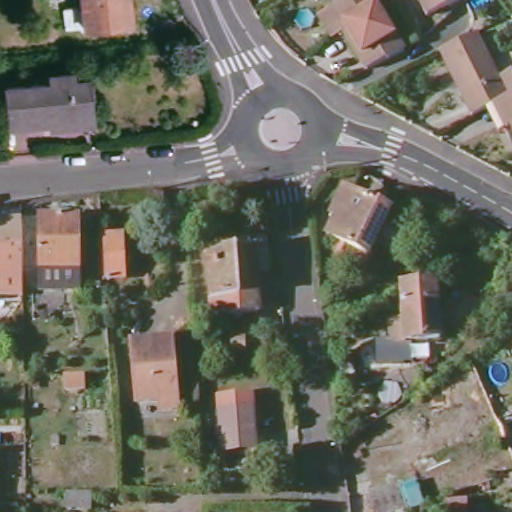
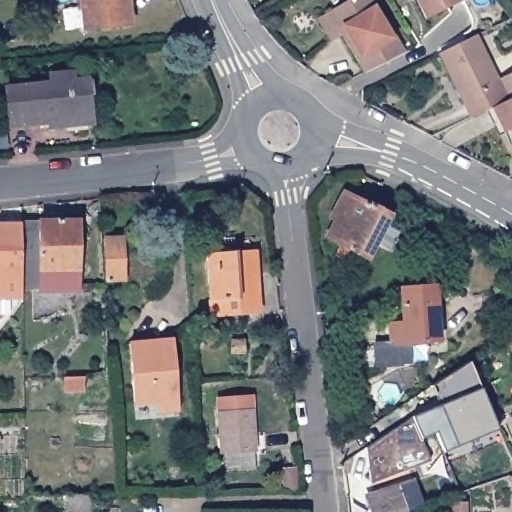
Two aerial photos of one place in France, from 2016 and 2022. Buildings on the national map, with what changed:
unchanged [(85,29),(81,0),(127,0),(130,24),(85,29)]
unchanged [(362,71),(341,29),(345,27),(332,2),(338,0),(374,0),(401,51),(362,71)]
unchanged [(412,0),(457,0),(421,19),(412,0)]
unchanged [(465,111),(433,49),(472,32),(503,91),(492,97),(465,111)]
unchanged [(73,84),(91,82),(92,101),(85,101),(86,122),(66,124),(67,132),(51,134),(49,126),(10,131),(6,91),(49,87),(48,79),(72,76),(73,84)]
unchanged [(512,87),(512,133),(492,97),(503,91),(512,87)]
unchanged [(371,207),(372,205),(390,216),(366,260),(330,241),(352,197),(371,207)]
unchanged [(41,286),(41,267),(21,267),(19,221),(19,215),(76,215),(77,267),(77,285),(41,286)]
unchanged [(0,293),(0,221),(19,221),(21,267),(21,274),(21,292),(9,292),(0,293)]
unchanged [(127,279),(110,280),(107,241),(124,240),(127,279)]
unchanged [(262,312),(214,316),(211,255),(259,252),(262,312)]
unchanged [(441,340),(392,345),(392,321),(405,319),(402,288),(437,286),(441,340)]
unchanged [(162,411),(161,401),(139,402),(134,342),(171,337),(179,399),(180,410),(162,411)]
unchanged [(248,358),(235,358),(234,341),(247,341),(248,358)]
unchanged [(361,376),(347,382),(339,365),(352,359),(361,376)]
new [(497,430),(456,447),(444,452),(437,434),(421,440),(428,460),(370,482),(366,447),(410,417),(440,405),(432,387),(467,362),(497,430)]
unchanged [(220,420),(218,405),(252,402),(254,401),(257,443),(249,445),(250,457),(224,460),(220,420)]
unchanged [(300,469),(300,487),(285,487),(285,468),(300,469)]
unchanged [(408,490),(422,486),(427,501),(393,512),(378,512),(371,491),(404,478),(408,490)]
unchanged [(449,502),(465,500),(467,512),(451,512),(449,502)]

